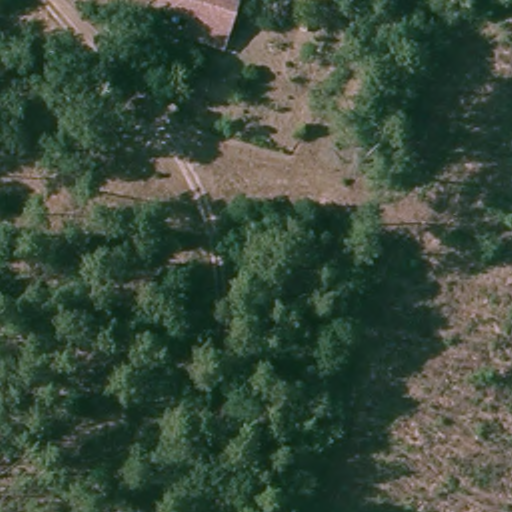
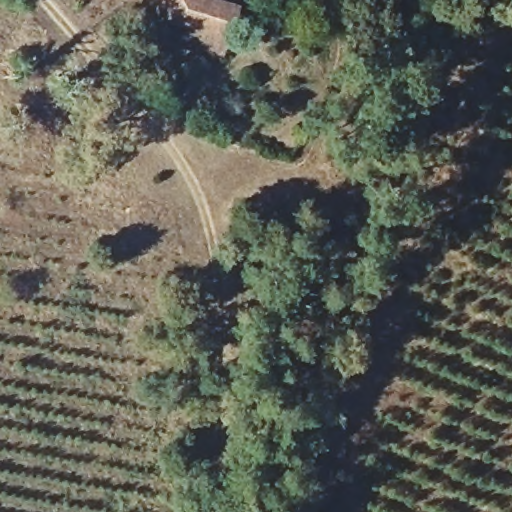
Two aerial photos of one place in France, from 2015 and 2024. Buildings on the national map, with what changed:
unchanged [(201,27),(161,12),(165,0),(226,0),(238,5),(224,50),(197,40),(201,27)]
unchanged [(81,104),(100,115),(82,150),(63,140),(81,104)]

